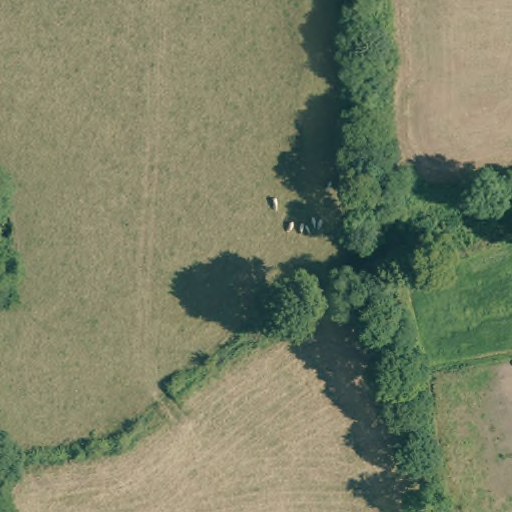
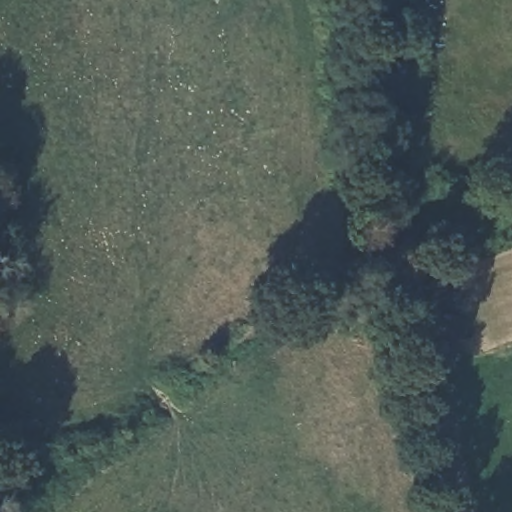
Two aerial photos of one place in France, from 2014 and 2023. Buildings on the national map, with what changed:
[]

